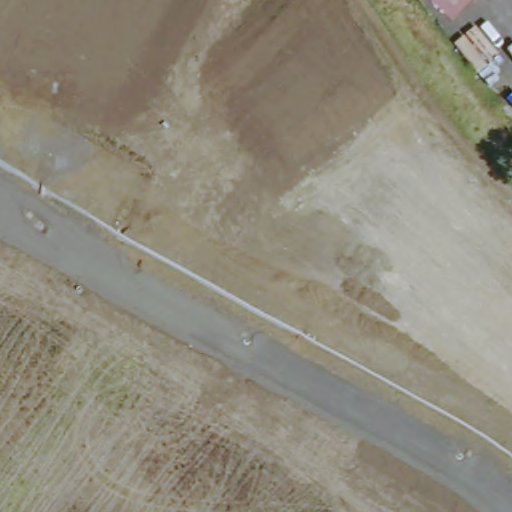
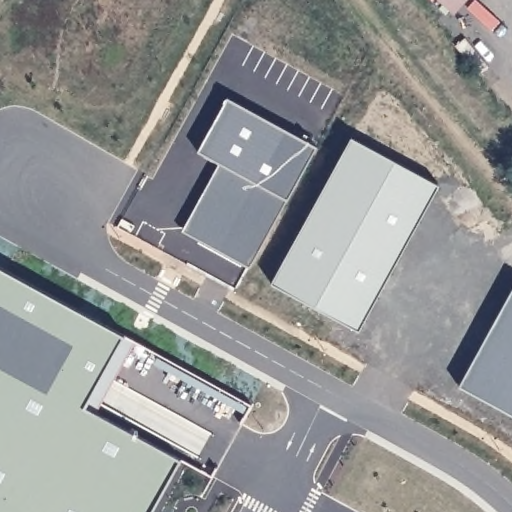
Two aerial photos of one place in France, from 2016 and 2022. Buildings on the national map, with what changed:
unchanged [(454,15),(436,0),(468,0),(454,15)]
new [(220,167),(198,155),(228,100),(291,135),(212,250),(194,241),(183,235),(188,224),(220,167)]
new [(291,135),(315,148),(248,270),(212,250),(291,135)]
new [(351,139),(395,163),(314,308),(271,285),(351,139)]
new [(395,163),(438,187),(359,332),(314,308),(395,163)]
new [(80,394),(185,455),(152,512),(0,512),(0,258),(120,323),(80,394)]
new [(512,289),(512,417),(458,387),(512,289)]

